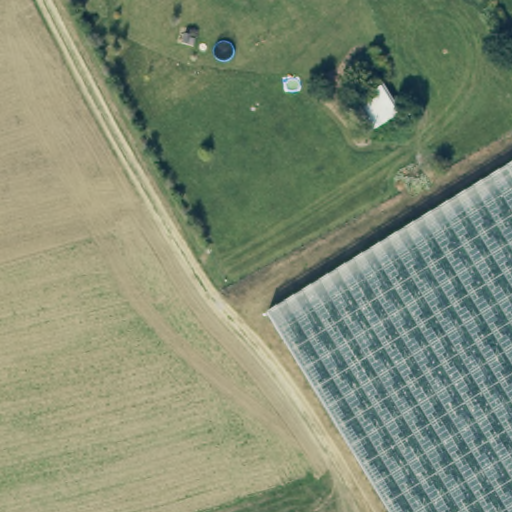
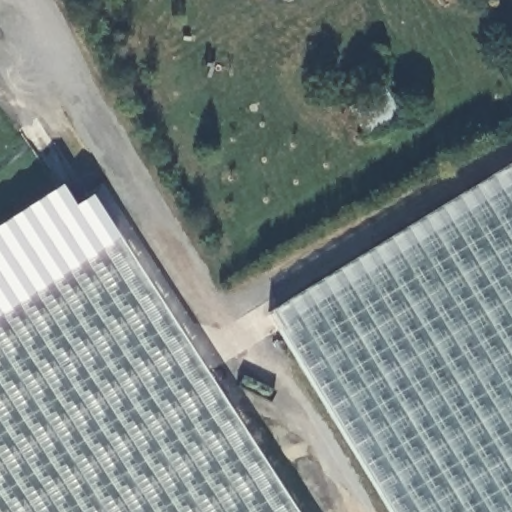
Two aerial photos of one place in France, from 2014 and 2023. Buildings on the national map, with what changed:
unchanged [(512,166),(512,512),(392,512),(268,314),(512,166)]
new [(0,223),(56,186),(70,207),(87,197),(290,512),(0,512),(0,223)]

